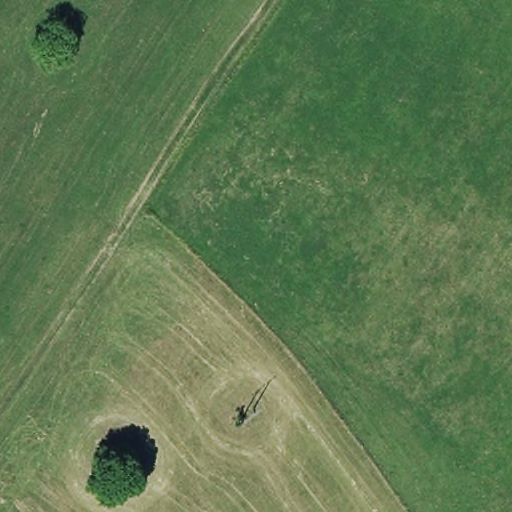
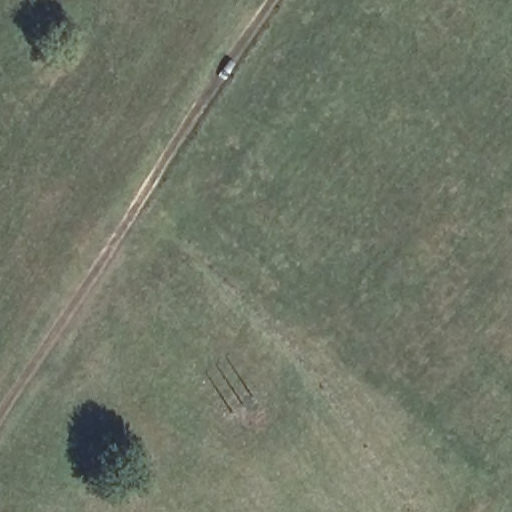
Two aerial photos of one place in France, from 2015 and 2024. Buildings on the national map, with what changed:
unchanged [(87,459),(124,441),(140,484),(102,501),(87,459)]

